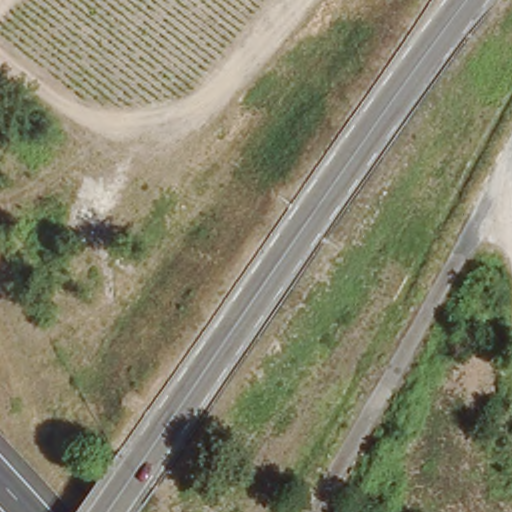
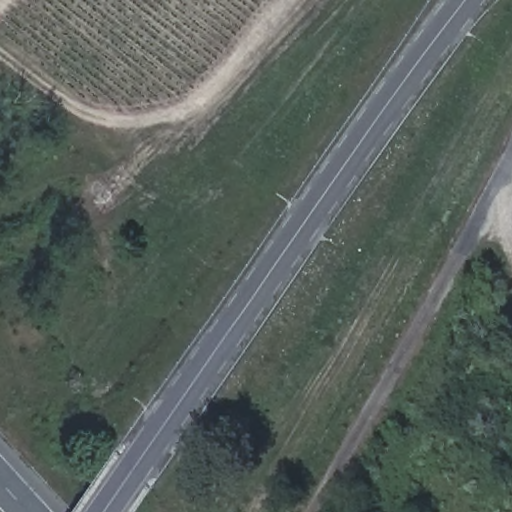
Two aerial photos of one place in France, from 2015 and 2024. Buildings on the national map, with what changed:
unchanged [(10,0),(12,0),(12,1),(10,0)]

